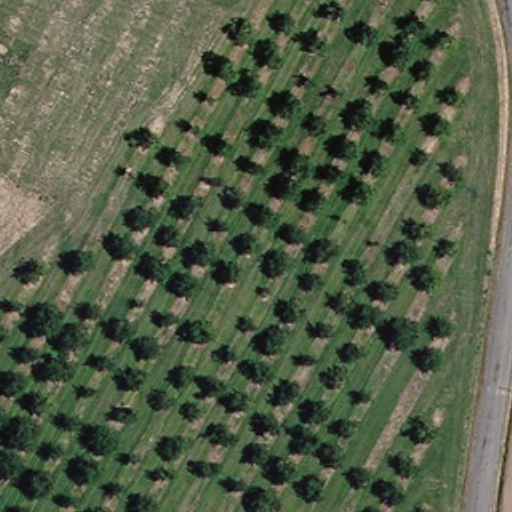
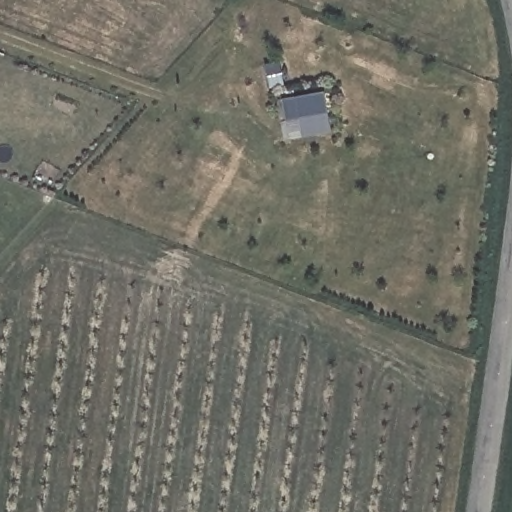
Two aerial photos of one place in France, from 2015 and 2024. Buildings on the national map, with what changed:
new [(330,134),(289,140),(283,100),(324,94),(330,134)]

